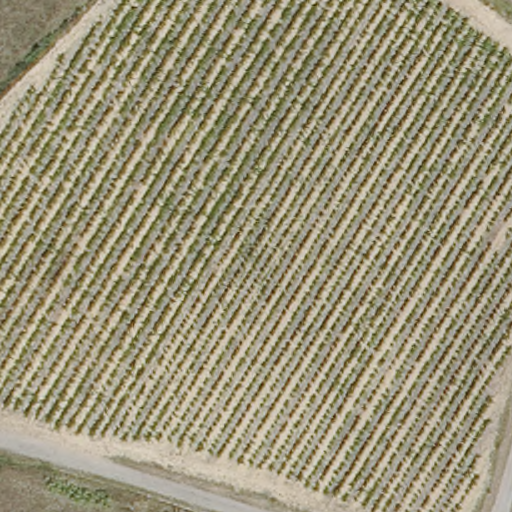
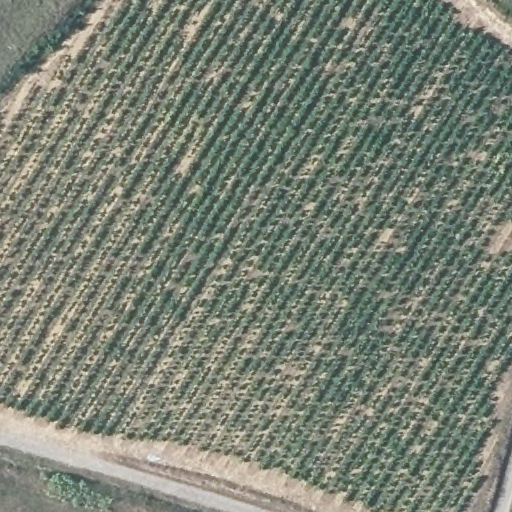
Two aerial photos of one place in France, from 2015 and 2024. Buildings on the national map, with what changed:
[]

